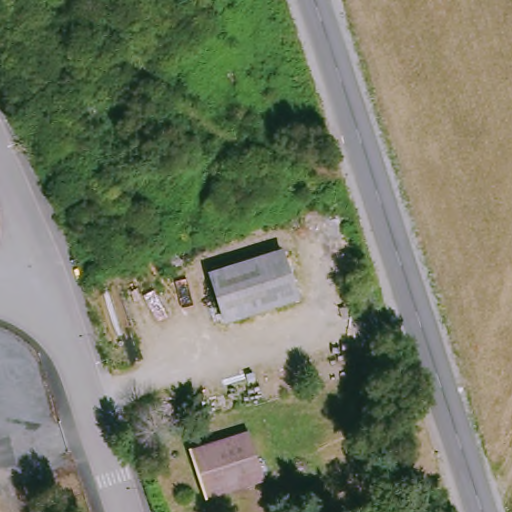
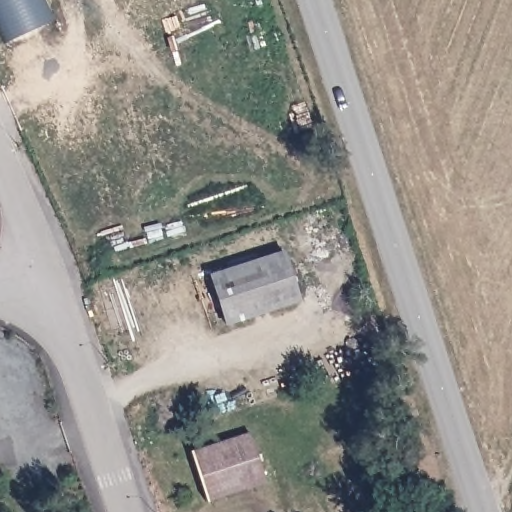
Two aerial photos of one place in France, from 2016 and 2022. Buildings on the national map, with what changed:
new [(3,46),(0,39),(0,0),(45,0),(55,23),(3,46)]
unchanged [(289,247),(308,299),(234,324),(216,270),(289,247)]
unchanged [(271,485),(208,505),(191,451),(254,431),(271,485)]

